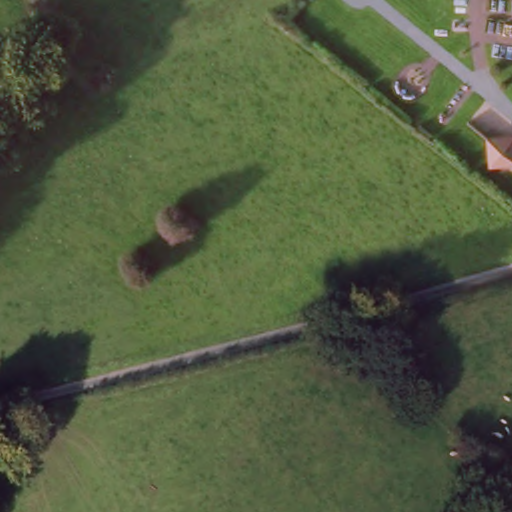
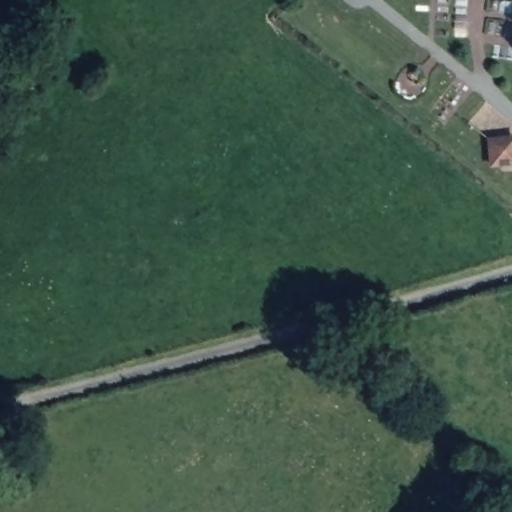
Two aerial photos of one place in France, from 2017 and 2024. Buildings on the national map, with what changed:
unchanged [(512,139),(512,170),(488,170),(487,140),(512,139)]

